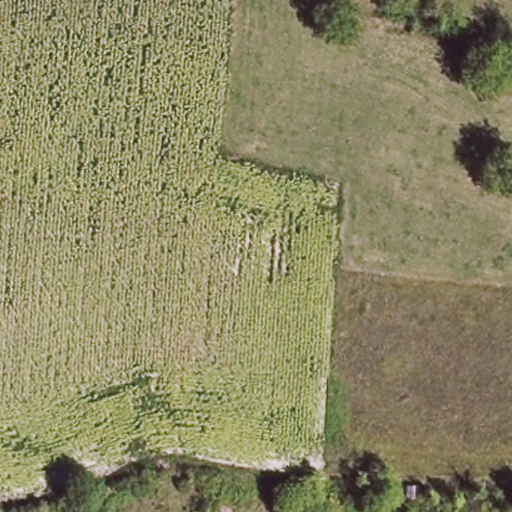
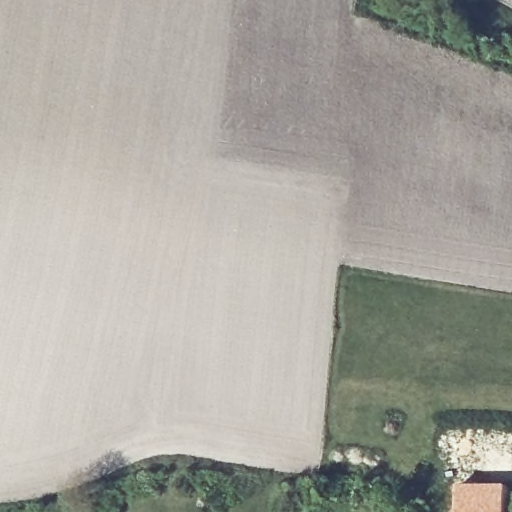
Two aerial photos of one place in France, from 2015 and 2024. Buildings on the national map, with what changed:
new [(507,481),(507,512),(458,512),(458,482),(507,481)]

